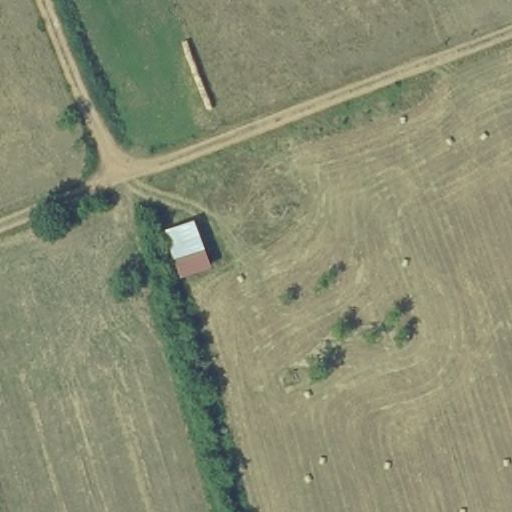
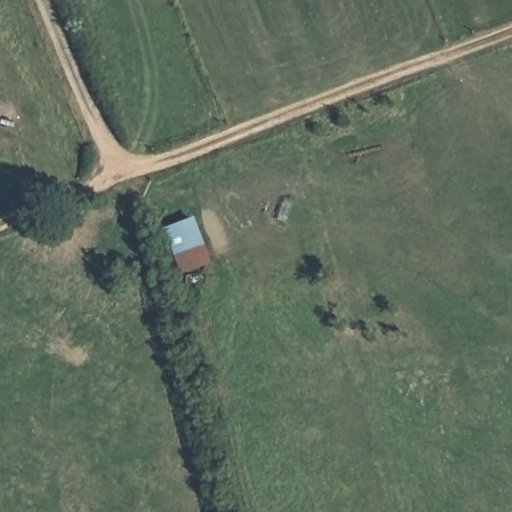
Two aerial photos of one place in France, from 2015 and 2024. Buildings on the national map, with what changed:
unchanged [(217,262),(187,275),(170,224),(201,214),(217,262)]

